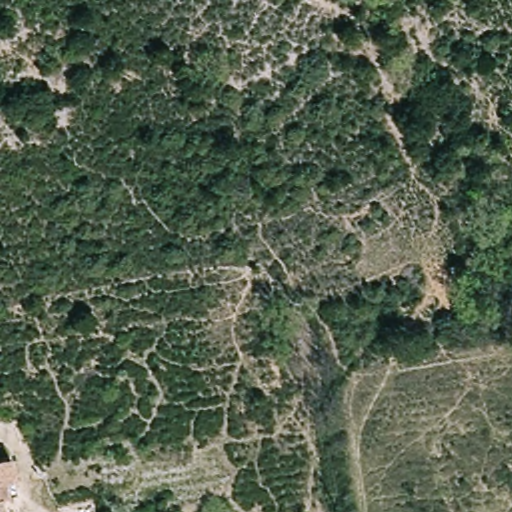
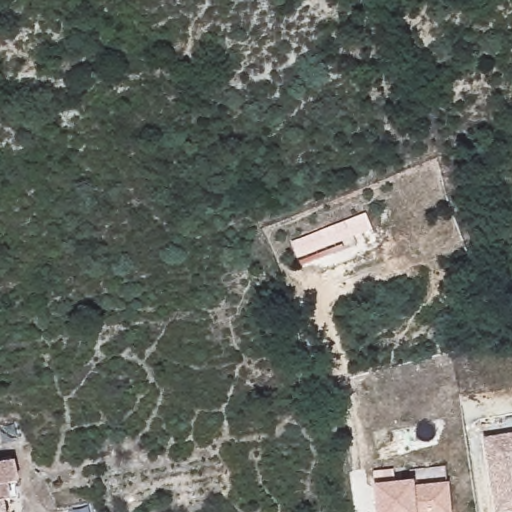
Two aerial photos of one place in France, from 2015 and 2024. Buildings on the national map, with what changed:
new [(354,236),(357,243),(299,266),(290,243),(364,214),(371,230),(354,236)]
new [(512,510),(498,512),(495,512),(485,439),(512,435),(512,510)]
unchanged [(10,467),(12,480),(4,490),(0,491),(0,469),(10,467)]
new [(445,480),(447,508),(447,512),(375,512),(373,480),(410,477),(410,482),(445,480)]
unchanged [(7,507),(0,508),(0,491),(4,490),(7,507)]

